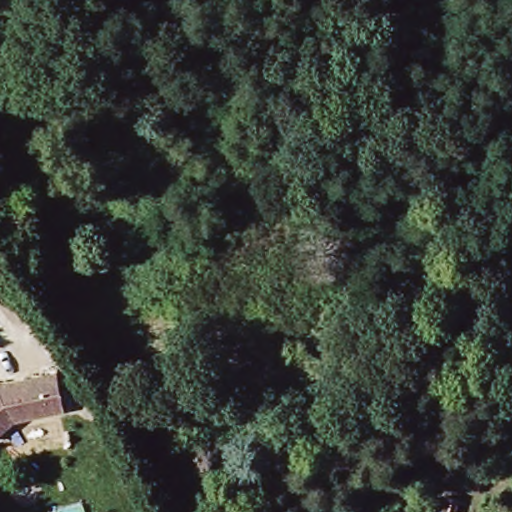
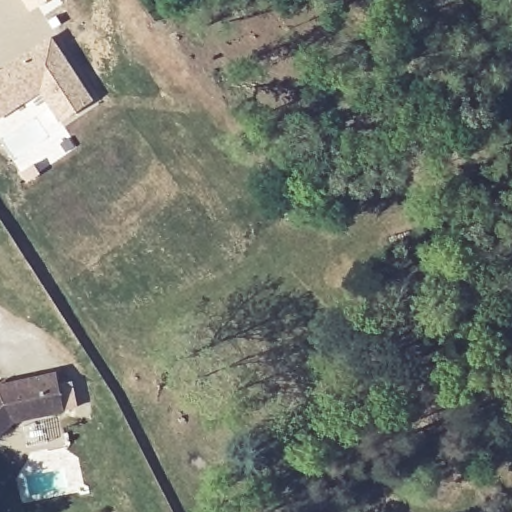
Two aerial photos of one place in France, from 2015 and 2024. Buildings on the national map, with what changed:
new [(63,6),(45,18),(37,7),(30,11),(23,0),(59,0),(63,6)]
new [(40,93),(0,118),(0,68),(51,34),(94,100),(59,121),(40,93)]
unchanged [(65,411),(16,420),(0,437),(0,385),(59,373),(65,411)]

